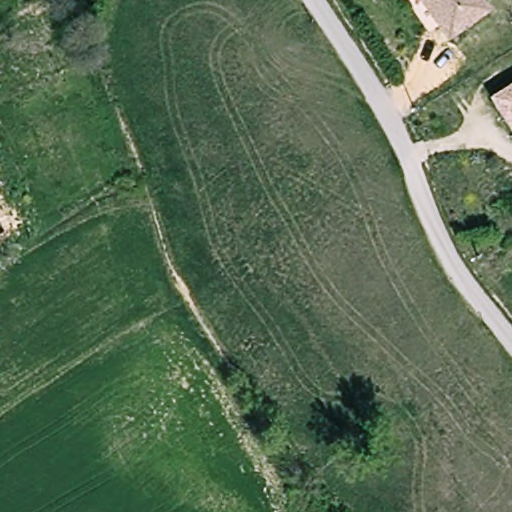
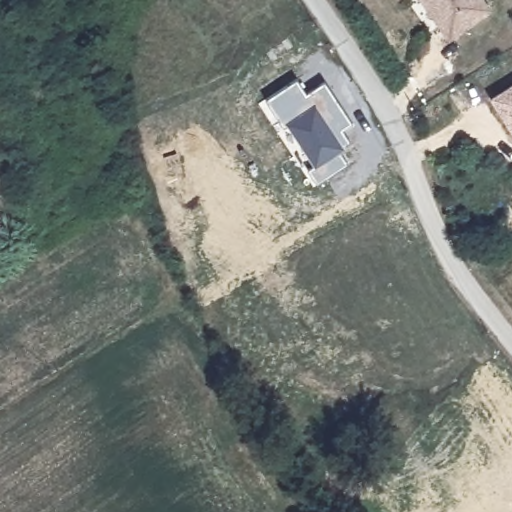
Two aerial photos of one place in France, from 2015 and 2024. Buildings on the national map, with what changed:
unchanged [(454,40),(424,0),(487,0),(495,10),(454,40)]
new [(352,122),(341,130),(349,140),(343,145),(345,147),(339,150),(347,163),(316,182),(307,169),(314,165),(286,125),(284,126),(266,100),(297,79),(307,93),(324,81),(352,122)]
unchanged [(512,84),(512,126),(495,92),(512,84)]

